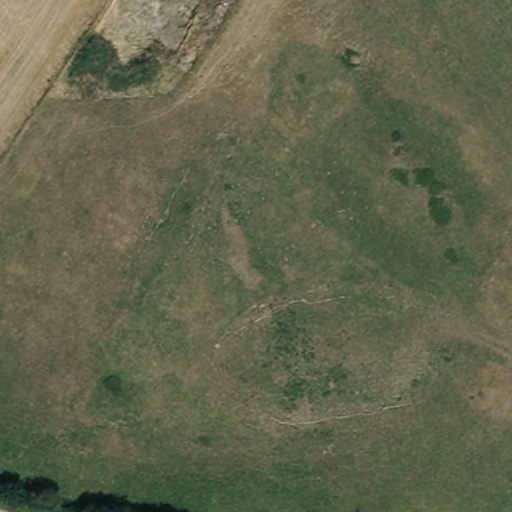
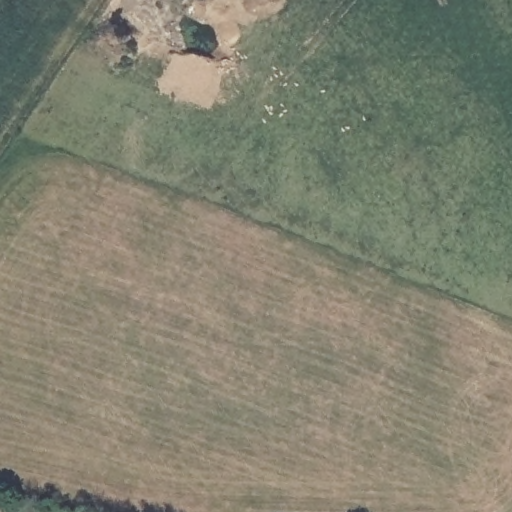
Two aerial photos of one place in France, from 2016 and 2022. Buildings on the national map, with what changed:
[]

